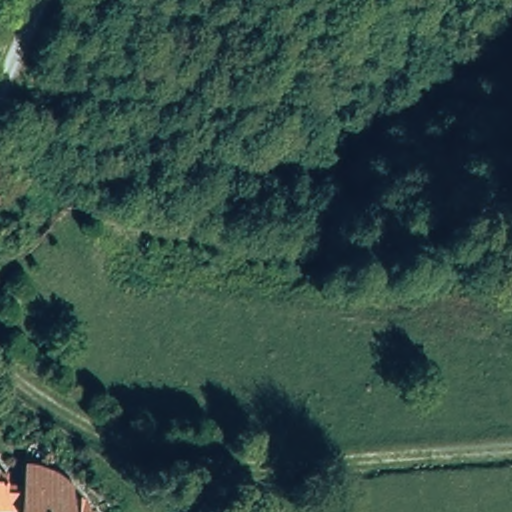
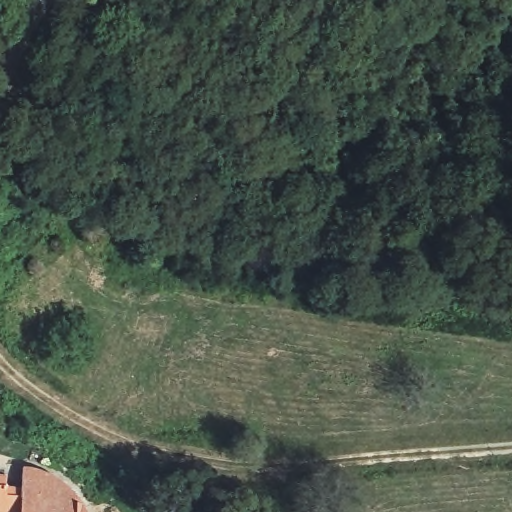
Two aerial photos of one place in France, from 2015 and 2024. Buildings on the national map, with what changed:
unchanged [(0,512),(0,481),(14,482),(13,490),(29,491),(33,473),(63,478),(93,512),(0,512)]

